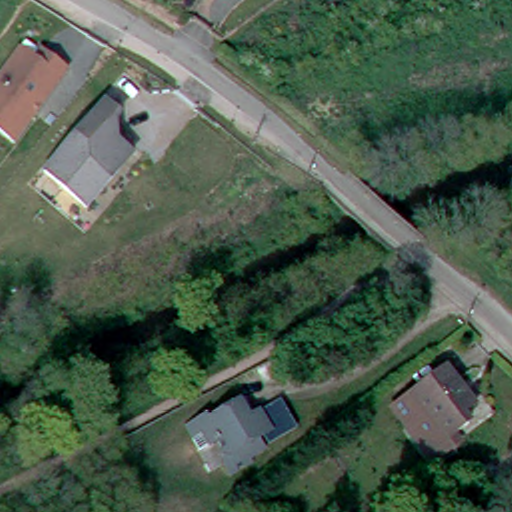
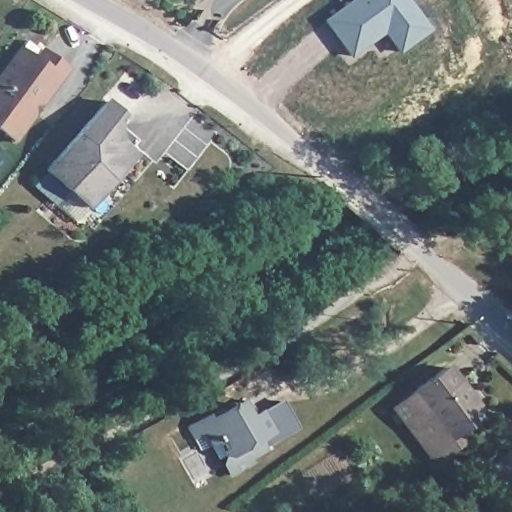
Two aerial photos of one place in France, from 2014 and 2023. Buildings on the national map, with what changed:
new [(396,53),(382,33),(348,58),(321,21),(350,0),(408,0),(429,29),(396,53)]
unchanged [(0,129),(0,71),(17,46),(34,55),(40,47),(70,69),(18,143),(0,129)]
unchanged [(115,116),(110,121),(110,127),(112,142),(127,156),(81,208),(59,188),(39,170),(100,102),(115,116)]
unchanged [(420,406),(403,420),(390,405),(445,362),(462,383),(424,411),(420,406)]
unchanged [(462,383),(479,405),(466,414),(473,422),(448,442),(424,411),(462,383)]
unchanged [(247,395),(251,405),(277,395),(296,424),(227,469),(212,444),(200,448),(186,420),(247,395)]

